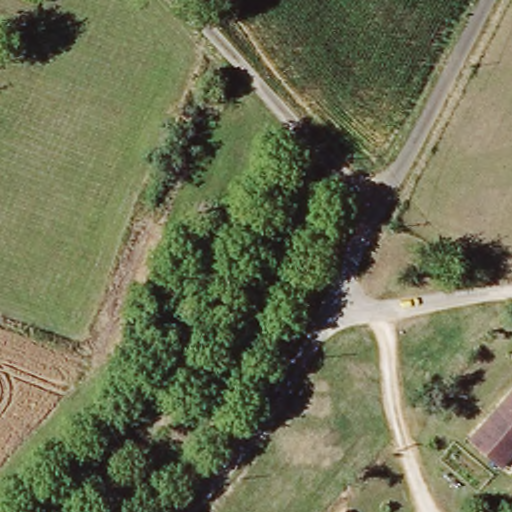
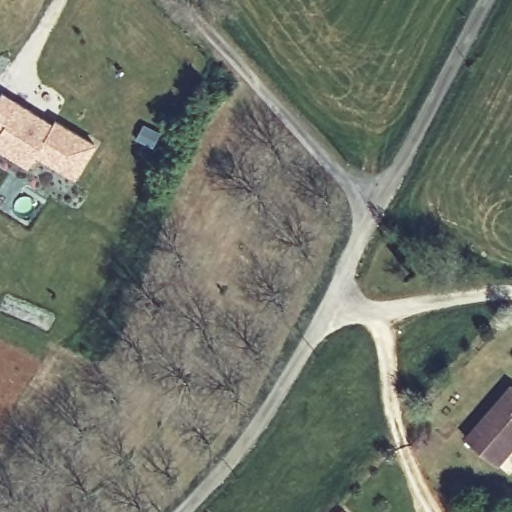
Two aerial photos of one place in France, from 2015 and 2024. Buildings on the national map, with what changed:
new [(75,180),(35,155),(27,168),(0,151),(0,94),(2,92),(53,122),(55,119),(95,143),(75,180)]
unchanged [(500,464),(470,439),(512,387),(512,448),(500,464)]

